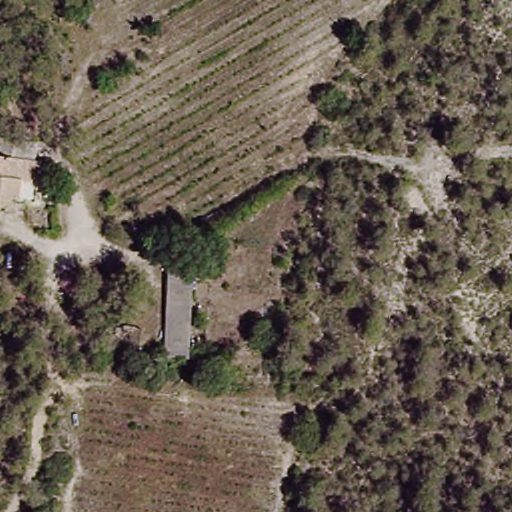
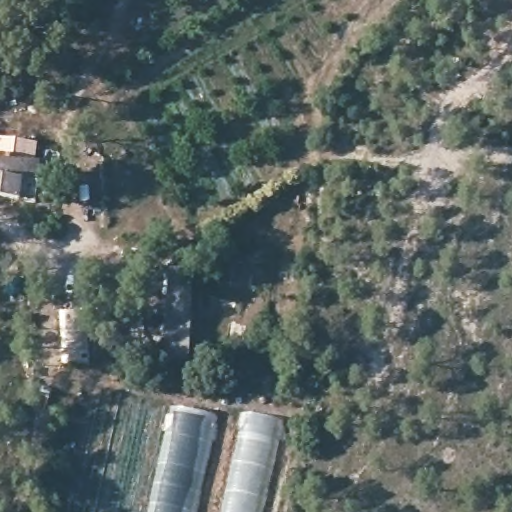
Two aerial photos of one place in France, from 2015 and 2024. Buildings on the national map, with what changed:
unchanged [(0,154),(3,154),(4,142),(36,144),(35,174),(16,174),(11,197),(0,197),(0,154)]
unchanged [(411,219),(400,194),(415,188),(426,214),(411,219)]
unchanged [(163,341),(169,269),(194,272),(187,353),(163,350),(163,341)]
new [(217,418),(196,512),(153,512),(177,408),(217,418)]
new [(284,424),(263,512),(223,512),(246,417),(284,424)]

